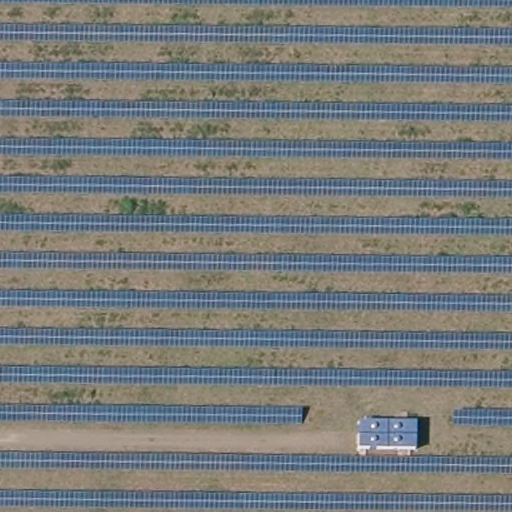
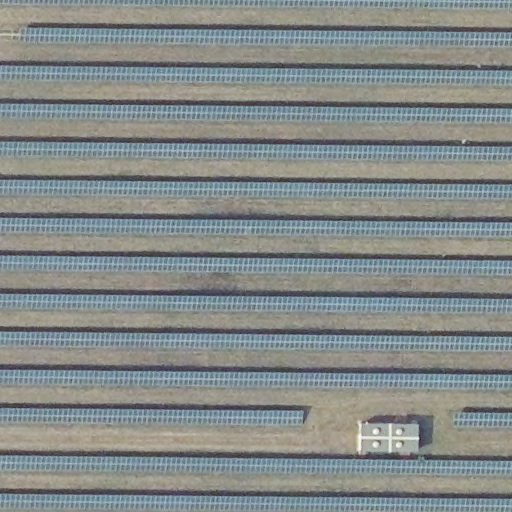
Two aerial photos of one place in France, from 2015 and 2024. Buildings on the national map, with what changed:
unchanged [(359,423),(416,423),(415,450),(358,450),(359,423)]

